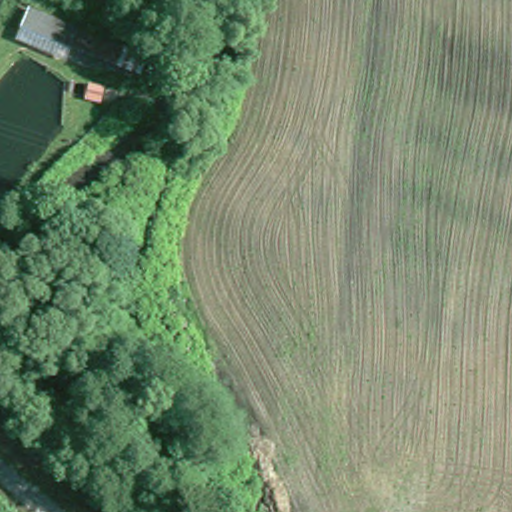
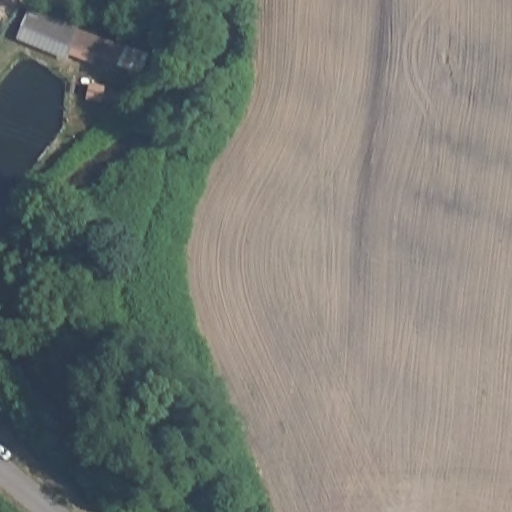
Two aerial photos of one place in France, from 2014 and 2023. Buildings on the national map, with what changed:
unchanged [(82,27),(68,60),(15,40),(29,4),(82,27)]
unchanged [(107,49),(102,62),(77,53),(83,39),(107,49)]

